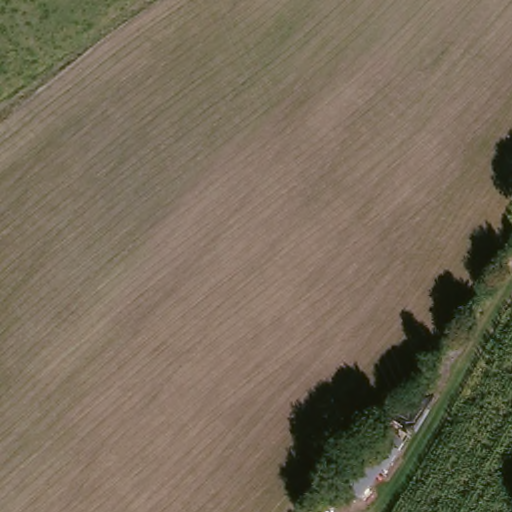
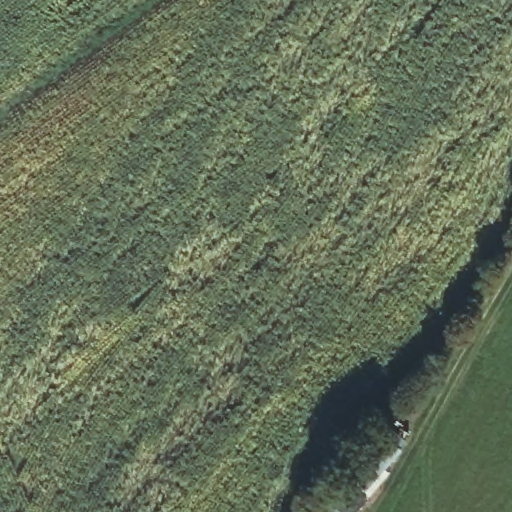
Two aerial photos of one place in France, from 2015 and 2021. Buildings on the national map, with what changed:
unchanged [(370,450),(391,470),(363,502),(341,479),(370,450)]

